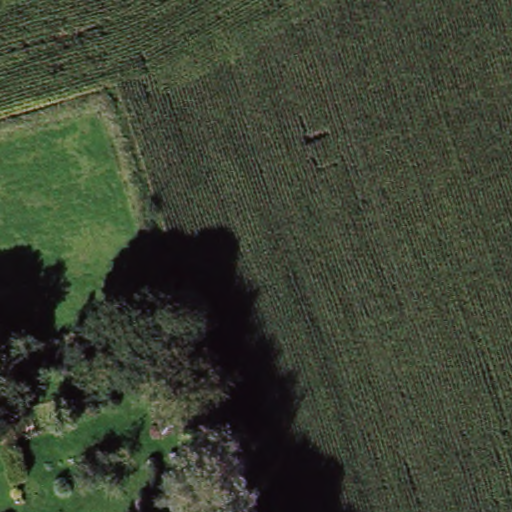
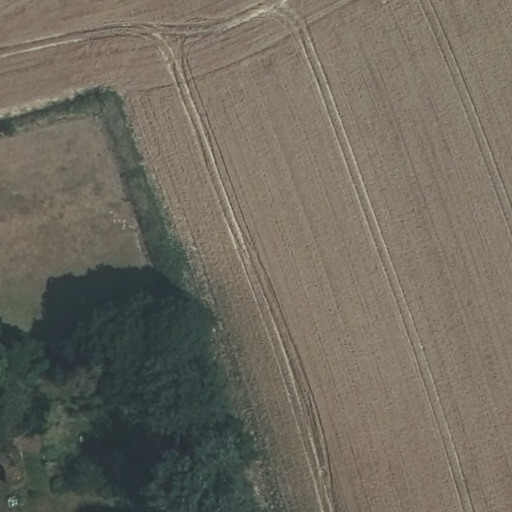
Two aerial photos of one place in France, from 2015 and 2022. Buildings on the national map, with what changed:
unchanged [(164,387),(175,429),(157,433),(145,392),(164,387)]

